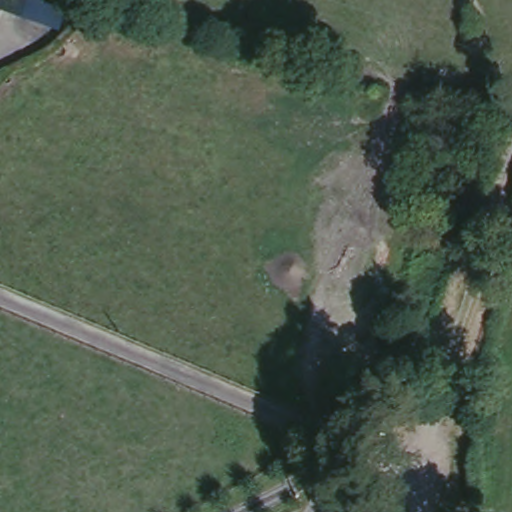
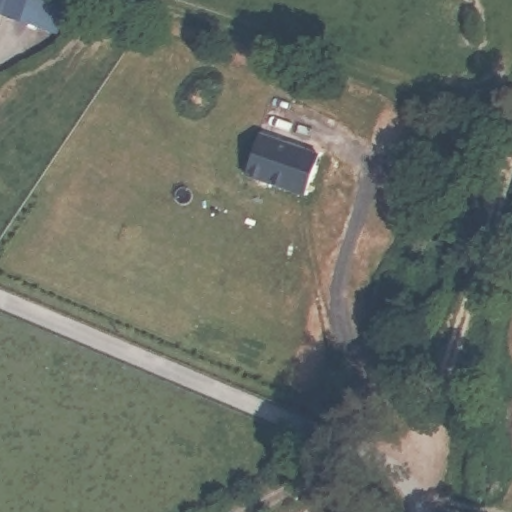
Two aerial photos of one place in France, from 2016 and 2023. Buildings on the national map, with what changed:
unchanged [(68,7),(60,29),(0,10),(0,0),(46,0),(68,7)]
new [(316,151),(305,191),(244,173),(259,133),(316,151)]

